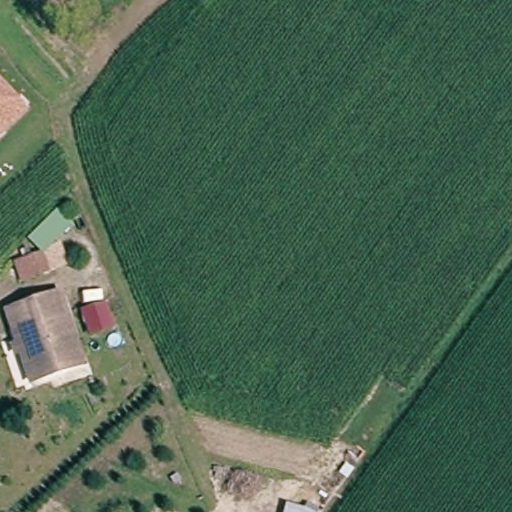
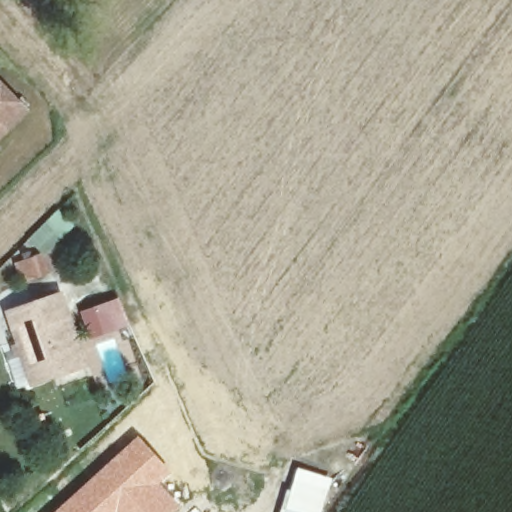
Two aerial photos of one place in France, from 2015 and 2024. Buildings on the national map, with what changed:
unchanged [(27,113),(14,125),(6,133),(0,139),(0,85),(27,113)]
unchanged [(63,292),(85,362),(34,381),(10,308),(63,292)]
new [(171,471),(161,480),(182,505),(174,512),(52,512),(138,434),(171,471)]
unchanged [(317,512),(304,512),(310,504),(317,512)]

